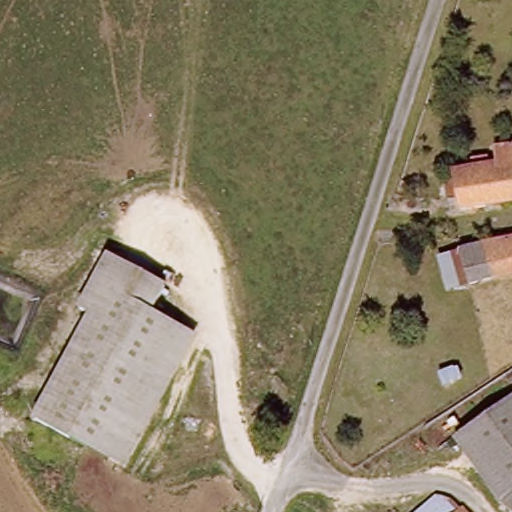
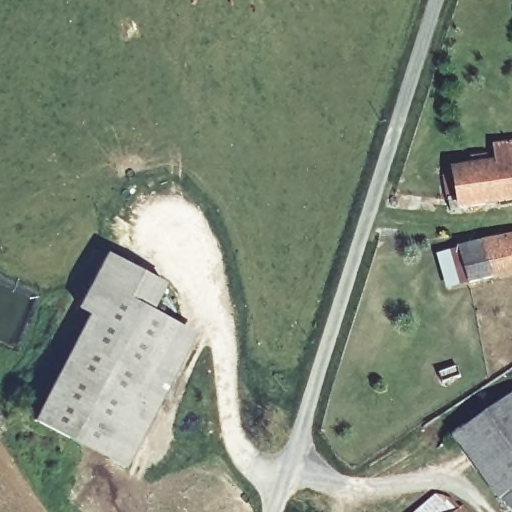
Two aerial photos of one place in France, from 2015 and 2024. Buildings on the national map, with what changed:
unchanged [(500,144),(512,142),(512,202),(457,210),(455,199),(441,198),(442,182),(452,182),(450,165),(501,161),(501,156),(500,144)]
unchanged [(486,240),(512,234),(512,271),(496,275),(486,240)]
unchanged [(467,282),(459,247),(486,240),(496,275),(467,282)]
unchanged [(161,314),(103,285),(116,259),(174,288),(161,314)]
unchanged [(188,328),(120,463),(35,420),(103,285),(161,314),(188,328)]
unchanged [(466,436),(512,403),(512,486),(507,490),(466,436)]
unchanged [(453,512),(415,512),(437,491),(455,510),(453,512)]
unchanged [(512,494),(512,496),(511,494),(512,494)]
unchanged [(464,502),(474,512),(453,512),(455,510),(464,502)]

